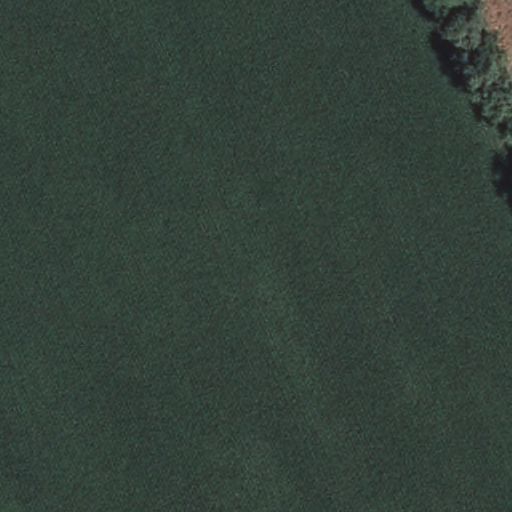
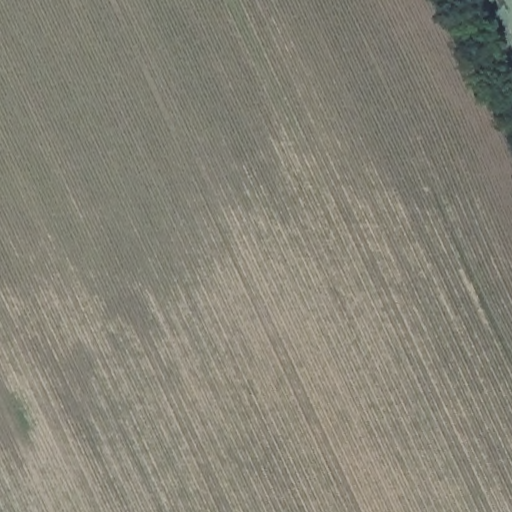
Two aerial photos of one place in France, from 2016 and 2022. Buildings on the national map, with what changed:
[]

